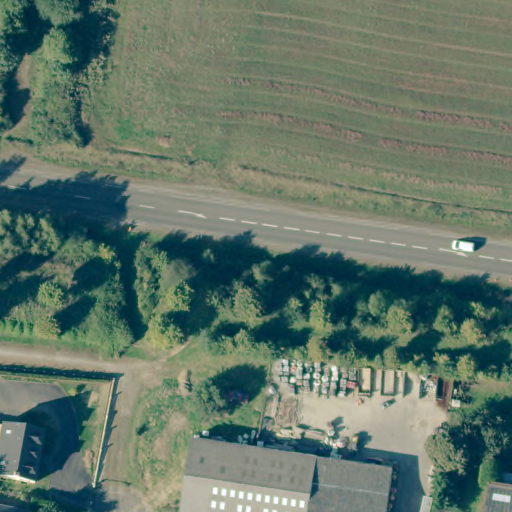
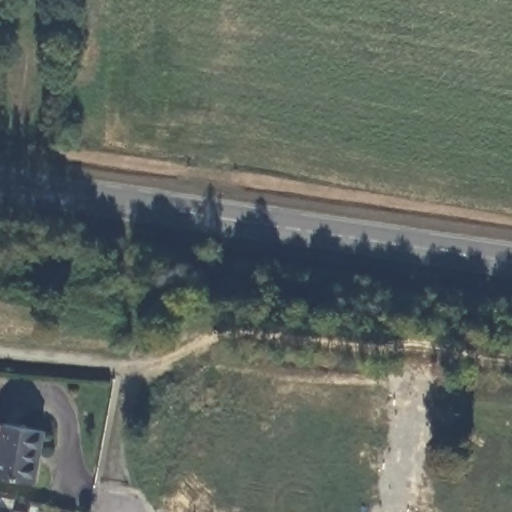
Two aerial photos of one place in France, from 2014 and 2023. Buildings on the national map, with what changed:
unchanged [(0,441),(3,424),(44,431),(35,483),(0,477),(0,441)]
demolished [(319,486),(315,512),(187,512),(198,439),(261,449),(323,458),(319,486)]
demolished [(323,458),(398,470),(395,498),(392,512),(315,512),(319,486),(323,458)]
demolished [(495,484),(512,487),(512,512),(491,512),(495,484)]
unchanged [(0,507),(20,510),(30,512),(0,512),(0,507)]

